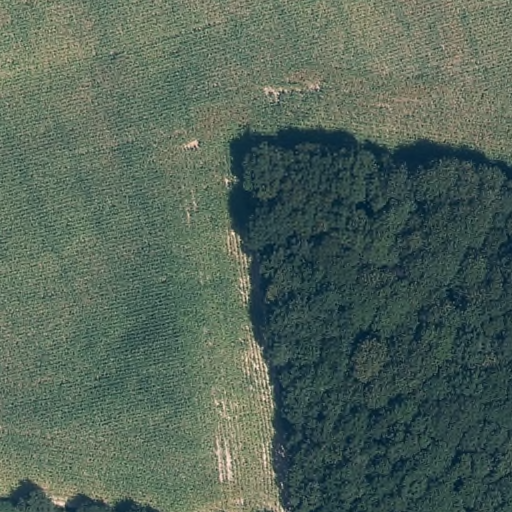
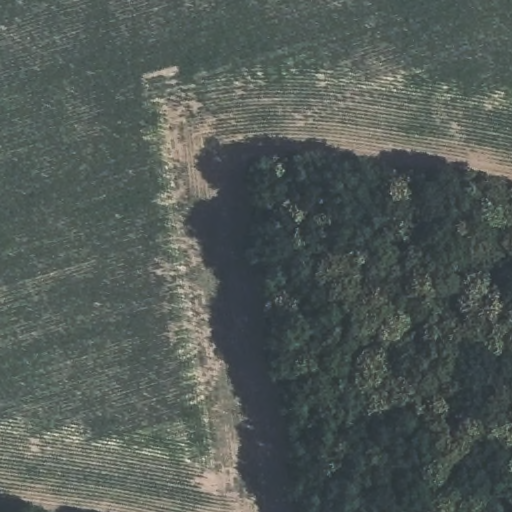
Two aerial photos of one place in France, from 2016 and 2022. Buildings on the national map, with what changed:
[]

